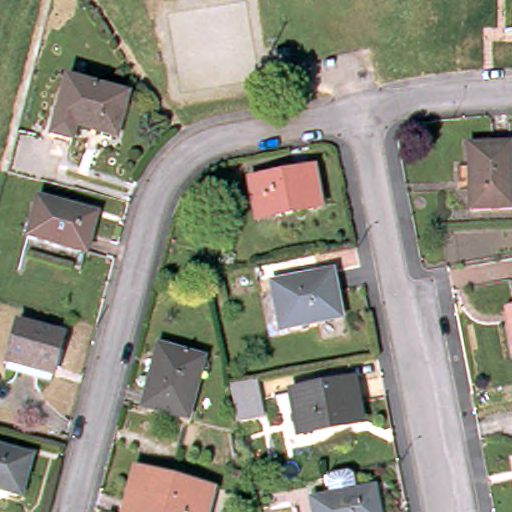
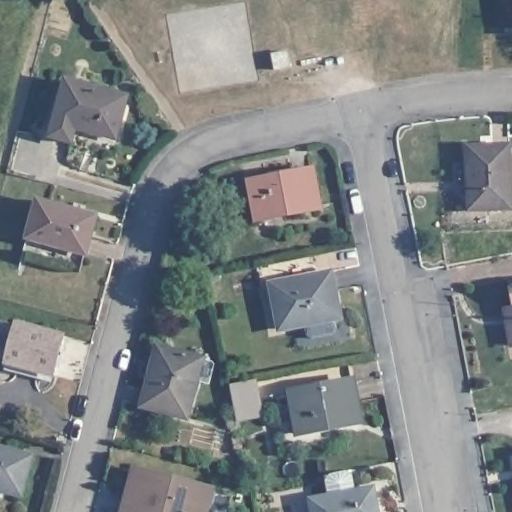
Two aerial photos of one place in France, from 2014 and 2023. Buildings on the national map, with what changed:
unchanged [(293,68),(278,71),(275,56),(290,53),(293,68)]
unchanged [(129,95),(117,137),(98,132),(100,129),(78,123),(75,138),(55,133),(67,79),(129,95)]
unchanged [(512,146),(512,162),(512,209),(470,210),(468,147),(512,146)]
unchanged [(250,180),(269,176),(268,172),(291,167),(292,171),(311,167),(318,203),(257,217),(250,180)]
unchanged [(90,215),(82,249),(29,235),(38,200),(90,215)]
unchanged [(331,278),(340,322),(282,335),(273,291),(331,278)]
unchanged [(512,309),(512,347),(507,324),(505,311),(512,309)]
unchanged [(65,335),(54,375),(8,363),(18,323),(65,335)]
unchanged [(202,358),(186,416),(143,403),(158,347),(202,358)]
unchanged [(258,416),(239,419),(232,383),(257,378),(259,394),(263,415),(258,416)]
unchanged [(360,422),(299,436),(290,394),(352,382),(360,422)]
unchanged [(16,498),(0,494),(0,452),(27,460),(16,498)]
unchanged [(210,488),(204,512),(123,512),(134,470),(210,488)]
unchanged [(378,512),(314,512),(312,501),(373,488),(378,512)]

